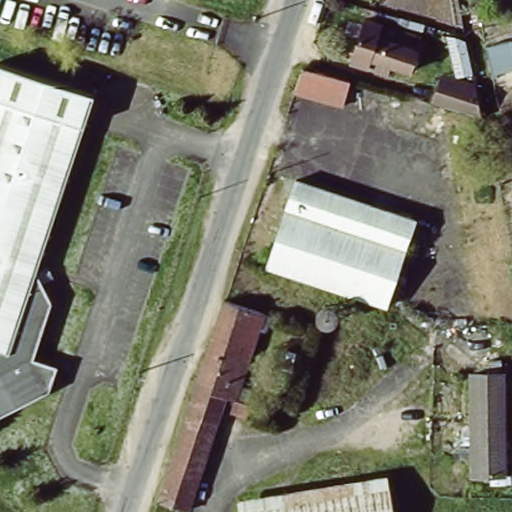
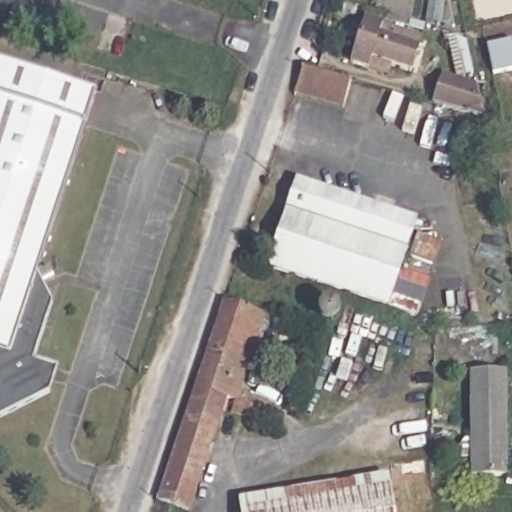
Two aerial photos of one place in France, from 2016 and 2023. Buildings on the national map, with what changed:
unchanged [(426,43),(422,54),(422,55),(415,76),(396,70),(393,79),(356,67),(371,24),(411,38),(426,43)]
unchanged [(512,70),(493,74),(487,46),(512,40),(512,70)]
unchanged [(351,81),(344,104),(296,90),(303,68),(351,81)]
unchanged [(37,281),(53,313),(34,370),(57,378),(50,402),(0,427),(0,74),(95,105),(37,281)]
unchanged [(434,114),(439,99),(443,86),(466,93),(476,96),(483,128),(434,114)]
unchanged [(388,312),(268,272),(296,185),(417,226),(388,312)]
unchanged [(196,512),(165,512),(163,512),(229,310),(268,324),(239,411),(230,408),(196,512)]
unchanged [(471,379),(504,378),(507,480),(473,481),(471,379)]
unchanged [(253,428),(236,422),(239,411),(256,416),(253,428)]
unchanged [(396,488),(400,512),(249,512),(396,488)]

